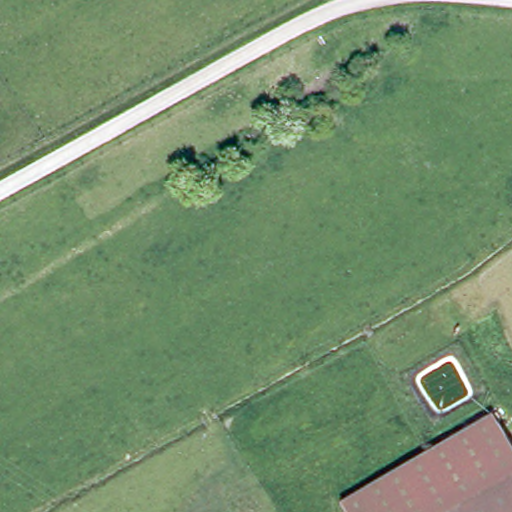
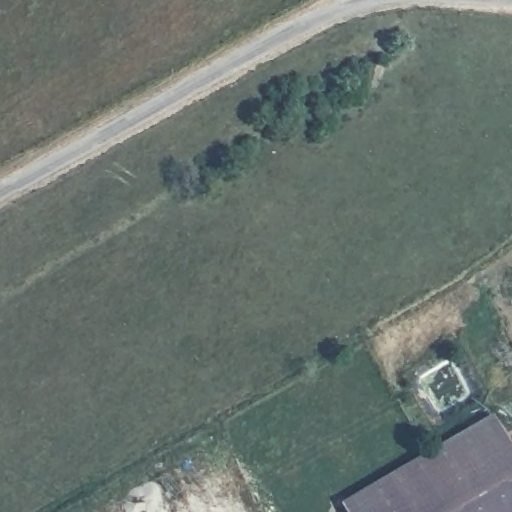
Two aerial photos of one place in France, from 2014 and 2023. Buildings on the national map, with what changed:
unchanged [(499,415),(512,438),(512,512),(352,512),(346,502),(499,415)]

